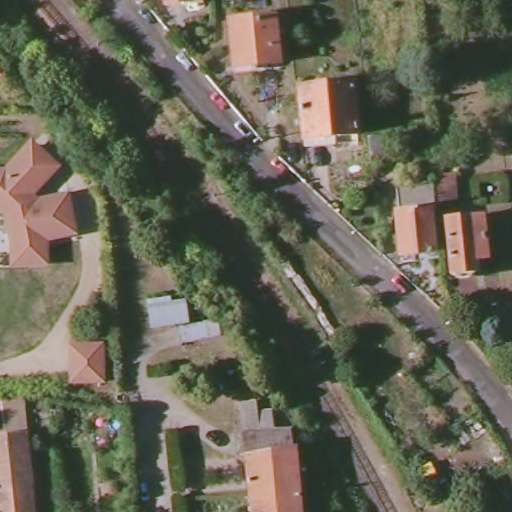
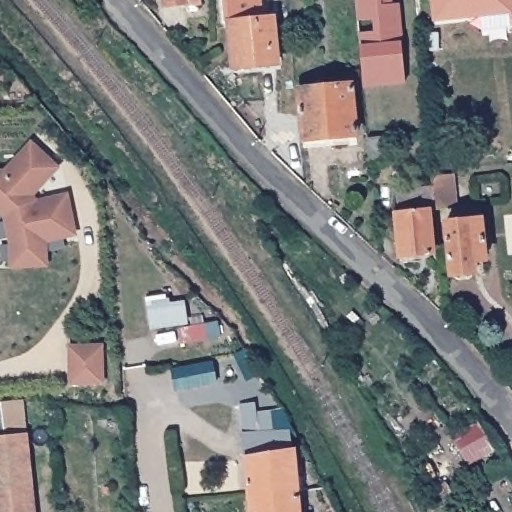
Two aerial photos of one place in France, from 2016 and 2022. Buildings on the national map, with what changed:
unchanged [(165,6),(164,0),(200,0),(200,4),(165,6)]
new [(399,5),(401,41),(405,84),(361,87),(359,47),(355,0),(382,0),(382,6),(399,5)]
new [(429,0),(512,0),(512,14),(432,23),(429,0)]
unchanged [(277,67),(252,69),(250,66),(232,67),(230,23),(272,20),(277,67)]
unchanged [(357,140),(305,145),(301,91),(352,86),(357,140)]
unchanged [(392,163),(370,166),(367,140),(390,138),(392,163)]
unchanged [(69,209),(70,243),(12,245),(11,214),(0,203),(0,173),(9,173),(35,148),(55,169),(27,196),(40,210),(69,209)]
unchanged [(451,213),(430,215),(427,185),(449,183),(451,213)]
unchanged [(480,258),(470,259),(470,270),(445,272),(442,218),(477,216),(480,258)]
unchanged [(427,260),(395,262),(390,221),(424,219),(427,260)]
unchanged [(147,308),(189,301),(192,326),(217,322),(220,342),(182,347),(180,328),(149,333),(147,308)]
unchanged [(70,389),(67,351),(99,349),(102,386),(70,389)]
unchanged [(33,512),(0,512),(0,403),(23,402),(33,512)]
unchanged [(259,436),(284,434),(289,438),(290,453),(294,453),(300,512),(252,512),(241,406),(255,405),(259,436)]

